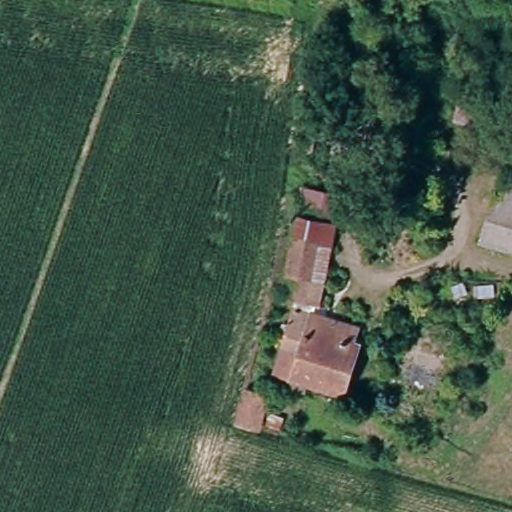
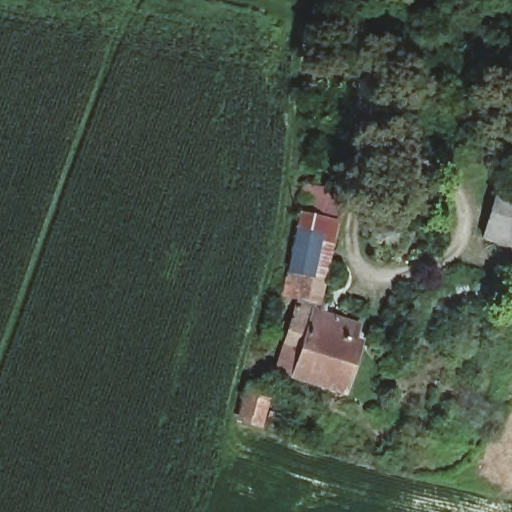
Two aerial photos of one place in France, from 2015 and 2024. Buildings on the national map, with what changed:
unchanged [(502,200),(509,179),(512,180),(512,203),(502,200)]
unchanged [(482,243),(495,198),(502,200),(512,203),(512,252),(482,243)]
unchanged [(338,322),(335,334),(358,341),(345,392),(273,371),(290,308),(293,294),(283,292),(293,237),(297,214),(322,219),(319,243),(311,315),(338,322)]
unchanged [(261,403),(255,429),(237,426),(242,399),(261,403)]

